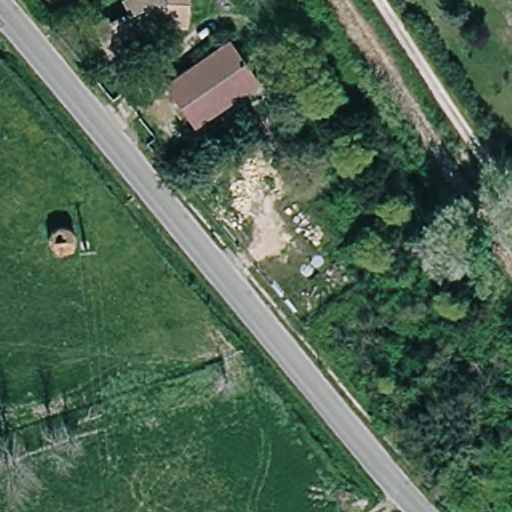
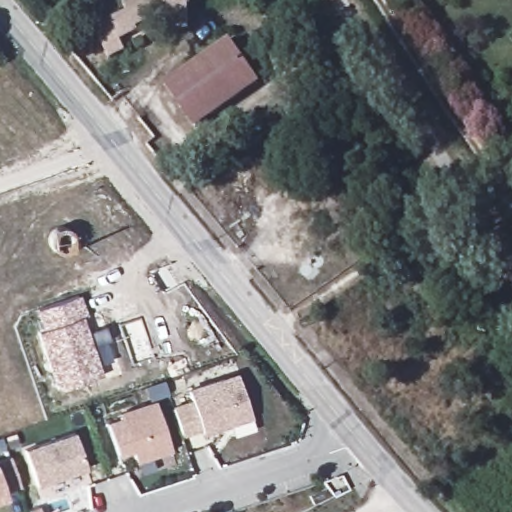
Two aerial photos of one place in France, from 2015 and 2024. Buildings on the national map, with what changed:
unchanged [(94,30),(113,21),(116,27),(131,20),(123,4),(131,0),(194,0),(194,32),(169,32),(169,12),(156,13),(134,25),(141,37),(125,45),(130,57),(113,66),(94,30)]
unchanged [(194,127),(165,87),(228,43),(258,82),(194,127)]
demolished [(268,223),(241,187),(271,164),(299,201),(268,223)]
demolished [(299,215),(306,216),(311,219),(314,225),(316,231),(314,237),(311,242),(306,245),(299,246),(293,244),(289,239),(286,234),(286,227),(288,222),(293,217),(294,217),(299,215)]
unchanged [(48,240),(49,235),(50,232),(55,228),(61,226),(68,227),(69,227),(73,231),(76,236),(76,242),(74,247),(69,251),(64,253),(58,252),(53,249),(50,245),(48,240)]
new [(56,390),(36,331),(43,329),(36,310),(80,295),(88,314),(83,316),(102,374),(56,390)]
new [(191,398),(188,389),(236,372),(251,418),(203,435),(201,430),(182,437),(171,406),(191,398)]
new [(120,417),(118,412),(154,401),(171,451),(136,463),(131,451),(118,456),(106,422),(120,417)]
new [(74,433),(86,470),(36,487),(23,450),(74,433)]
new [(4,493),(6,497),(0,500),(0,460),(9,457),(20,487),(4,493)]

